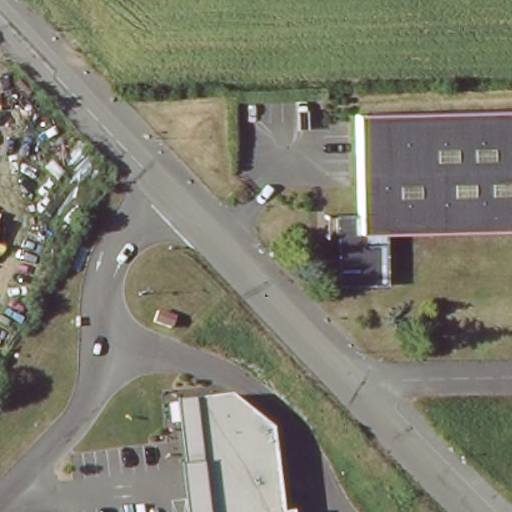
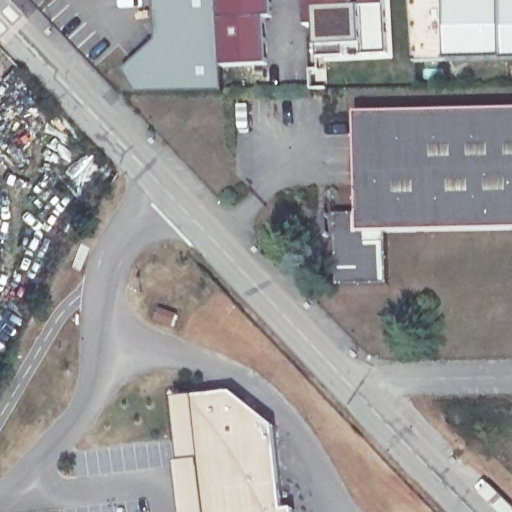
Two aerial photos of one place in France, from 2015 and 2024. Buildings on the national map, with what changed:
new [(223,67),(222,91),(139,93),(122,70),(157,40),(157,0),(219,0),(223,67)]
new [(219,0),(273,0),(273,18),(265,18),(268,64),(223,67),(219,0)]
new [(392,58),(368,59),(368,52),(349,52),(349,59),(324,60),(325,32),(317,32),(316,0),(391,0),(392,58)]
new [(512,55),(442,56),(442,0),(512,0),(512,55)]
unchanged [(386,284),(334,285),(331,215),(357,214),(354,118),(512,113),(512,229),(384,234),(386,284)]
unchanged [(302,512),(190,512),(177,402),(240,390),(279,428),(289,509),(301,504),(302,512)]

